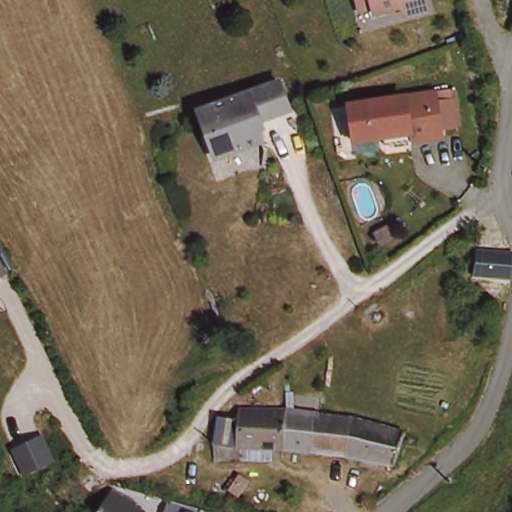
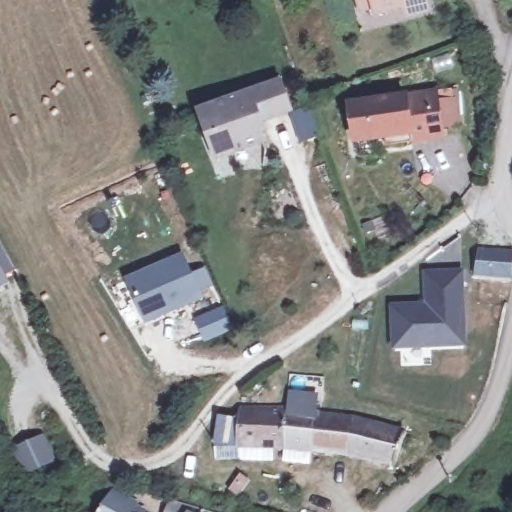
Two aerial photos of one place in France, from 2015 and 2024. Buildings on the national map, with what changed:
unchanged [(425,0),(428,11),(407,16),(405,10),(378,16),(376,10),(363,13),(360,0),(425,0)]
unchanged [(275,84),(285,112),(251,124),(257,143),(216,157),(209,134),(202,136),(195,111),(275,84)]
unchanged [(425,96),(442,94),(447,133),(430,134),(431,141),(375,149),(373,140),(343,144),(339,108),(425,96)]
new [(386,213),(393,233),(366,244),(358,224),(386,213)]
new [(421,299),(420,265),(425,264),(425,262),(455,239),(457,243),(460,242),(467,347),(390,349),(387,302),(421,299)]
unchanged [(12,274),(0,279),(0,249),(12,274)]
unchanged [(487,250),(512,253),(512,281),(483,278),(485,265),(487,250)]
new [(182,253),(203,299),(144,325),(125,278),(182,253)]
unchanged [(240,428),(241,418),(285,407),(285,409),(280,454),(272,453),(265,453),(240,452),(235,451),(215,452),(215,451),(217,437),(220,424),(227,426),(240,428)]
unchanged [(291,407),(317,408),(317,423),(313,455),(310,454),(280,454),(285,409),(285,407),(291,407)]
unchanged [(341,425),(351,428),(344,463),(313,455),(317,423),(341,425)]
unchanged [(401,439),(392,476),(347,463),(344,463),(351,428),(401,439)]
unchanged [(50,458),(25,469),(15,447),(40,435),(50,458)]
unchanged [(240,476),(230,490),(225,486),(235,472),(240,476)]
unchanged [(107,509),(121,500),(131,512),(103,512),(107,509)]

